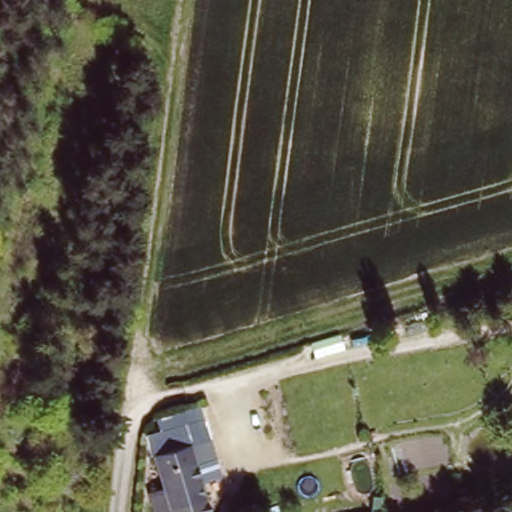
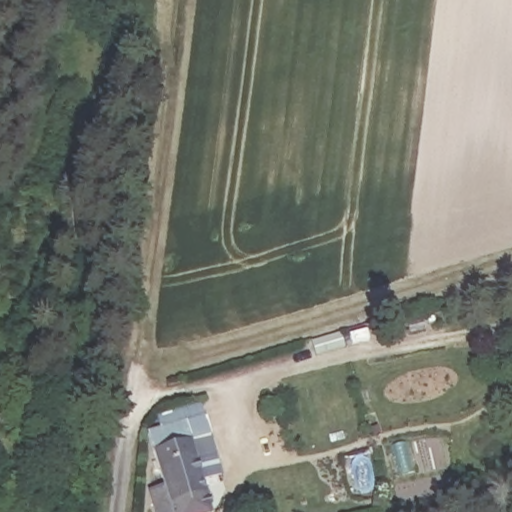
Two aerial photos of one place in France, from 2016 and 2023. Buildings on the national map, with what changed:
unchanged [(170,421),(166,406),(195,398),(200,414),(205,433),(186,438),(208,512),(151,512),(143,486),(158,482),(148,448),(142,429),(170,421)]

